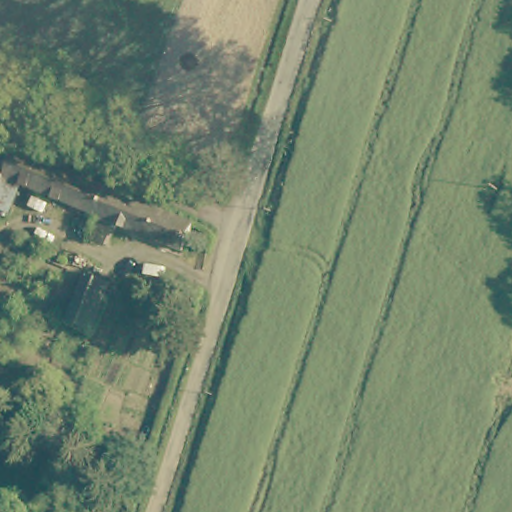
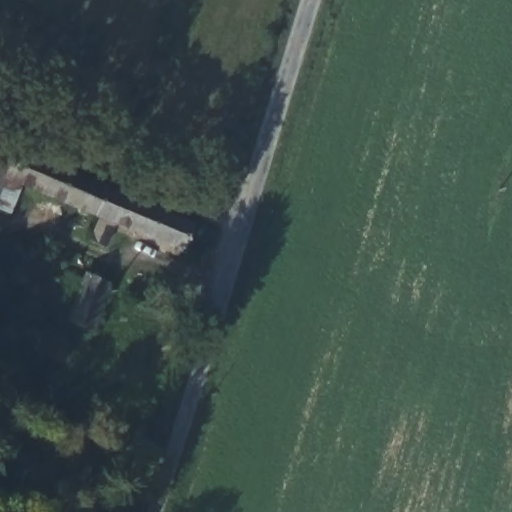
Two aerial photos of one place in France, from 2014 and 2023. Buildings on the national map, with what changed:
unchanged [(37,160),(189,224),(178,252),(0,173),(0,130),(42,147),(37,160)]
unchanged [(80,353),(57,345),(91,254),(115,264),(80,353)]

